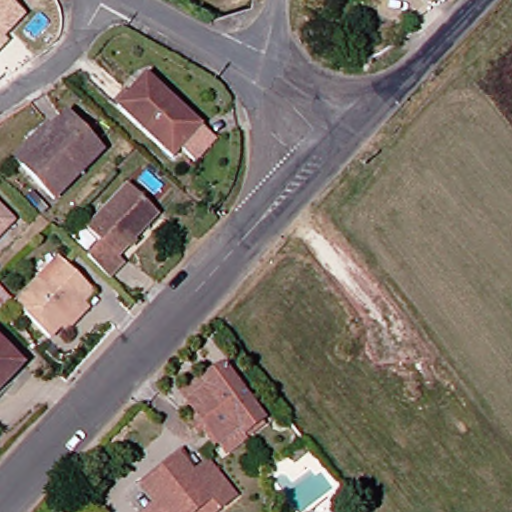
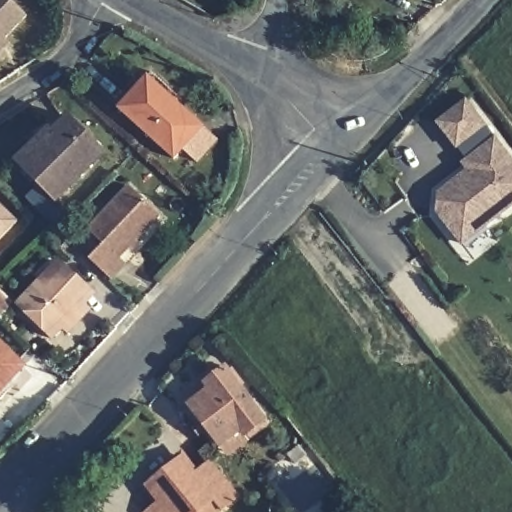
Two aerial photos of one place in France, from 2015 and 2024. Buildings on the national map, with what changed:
unchanged [(4,38),(9,43),(0,51),(0,0),(9,0),(25,15),(4,38)]
unchanged [(152,81),(206,130),(179,161),(125,111),(152,81)]
new [(434,212),(438,191),(464,170),(461,163),(466,159),(458,149),(456,151),(435,123),(466,100),(512,160),(512,209),(462,247),(434,212)]
unchanged [(50,127),(54,131),(68,116),(103,150),(56,198),(18,160),(50,127)]
unchanged [(93,230),(135,185),(165,215),(124,258),(129,263),(115,277),(94,257),(108,243),(93,230)]
unchanged [(0,237),(0,202),(18,218),(0,237)]
unchanged [(66,330),(56,341),(22,308),(45,283),(64,263),(70,269),(93,291),(99,296),(89,306),(95,312),(73,336),(66,330)]
unchanged [(3,387),(7,391),(0,399),(0,343),(23,364),(3,387)]
unchanged [(234,459),(226,449),(214,434),(206,439),(199,430),(207,425),(195,411),(187,400),(208,384),(210,388),(230,373),(269,424),(249,440),(253,444),(234,459)]
unchanged [(146,487),(202,445),(245,501),(232,512),(140,512),(130,499),(146,487)]
unchanged [(295,463),(289,455),(299,446),(306,454),(295,463)]

